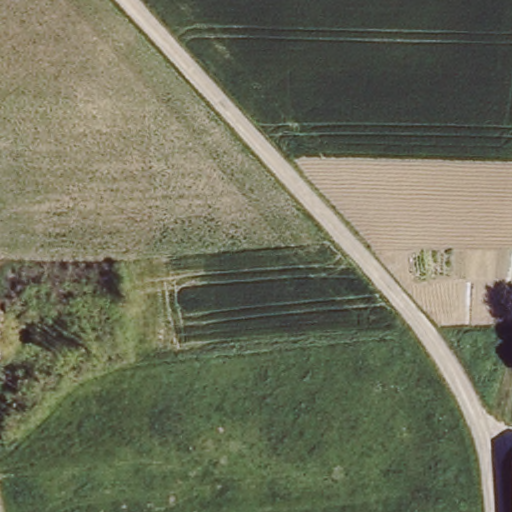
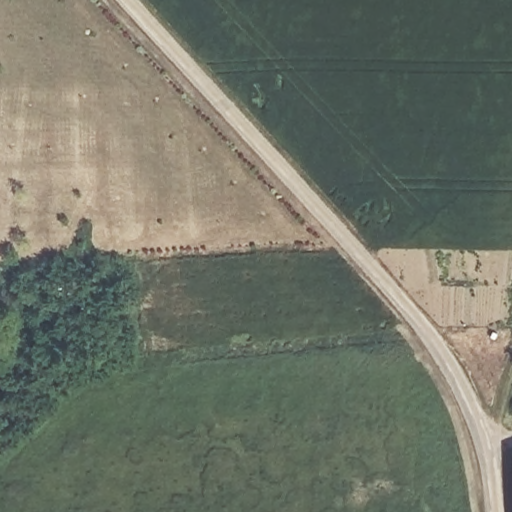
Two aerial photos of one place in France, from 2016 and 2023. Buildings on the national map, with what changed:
unchanged [(512,509),(511,459),(512,458),(512,509)]

